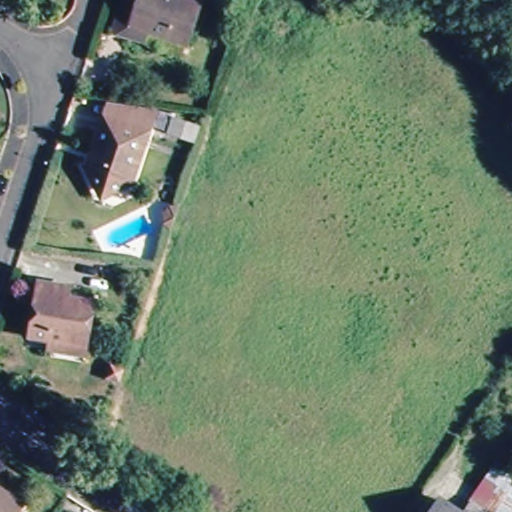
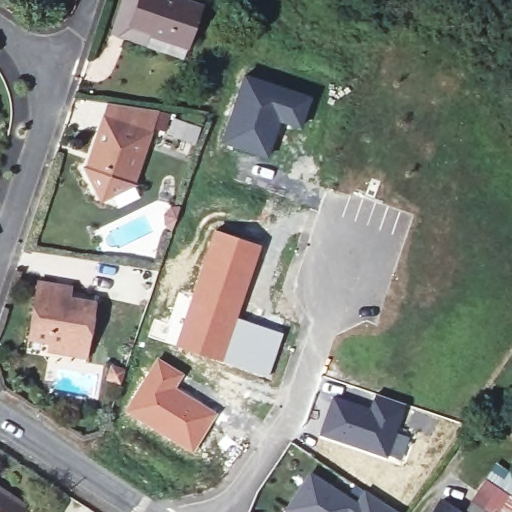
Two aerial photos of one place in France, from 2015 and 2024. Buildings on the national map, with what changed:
unchanged [(116,16),(122,0),(201,0),(187,40),(150,26),(145,39),(129,33),(112,27),(116,16)]
new [(244,72),(312,95),(301,130),(281,123),(267,159),(220,142),(244,72)]
unchanged [(84,155),(104,145),(107,135),(98,132),(106,115),(112,98),(148,104),(162,105),(152,130),(149,140),(136,176),(99,192),(84,155)]
unchanged [(171,227),(166,240),(160,233),(161,223),(165,214),(175,215),(171,227)]
new [(213,230),(261,245),(237,316),(221,362),(173,345),(213,230)]
unchanged [(41,351),(43,341),(24,337),(36,281),(56,285),(67,286),(64,298),(91,303),(82,348),(80,360),(41,351)]
new [(237,316),(283,333),(268,379),(221,362),(237,316)]
new [(157,357),(185,374),(177,387),(217,413),(192,453),(124,411),(157,357)]
unchanged [(108,375),(119,380),(115,393),(103,389),(108,375)]
new [(332,393),(368,406),(374,392),(407,404),(397,431),(410,437),(401,461),(388,456),(387,458),(317,435),(332,393)]
new [(348,495),(355,485),(398,512),(285,512),(282,510),(310,470),(348,495)]
unchanged [(427,512),(438,494),(456,505),(485,473),(507,495),(495,512),(427,512)]
unchanged [(9,512),(0,512),(0,487),(17,500),(9,512)]

